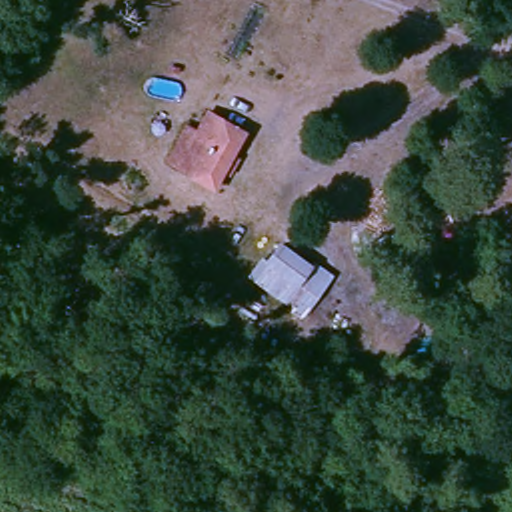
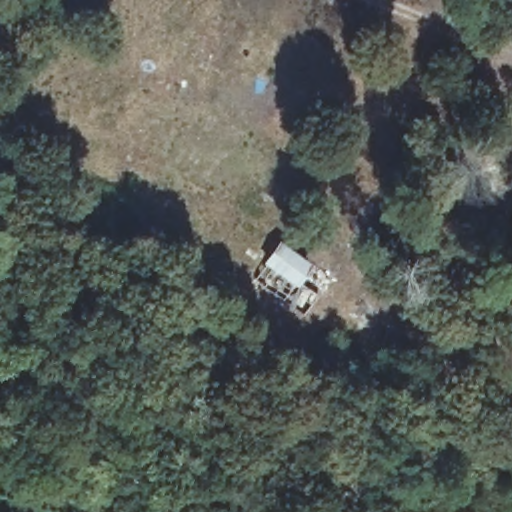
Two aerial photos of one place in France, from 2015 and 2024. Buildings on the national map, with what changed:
demolished [(207,115),(239,135),(208,187),(175,166),(207,115)]
unchanged [(311,322),(250,284),(282,243),(337,276),(311,322)]

